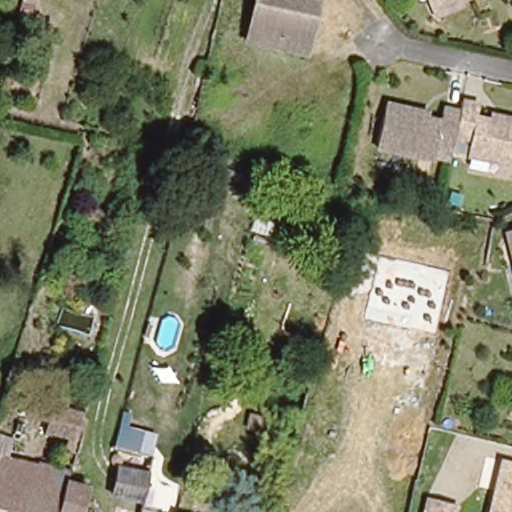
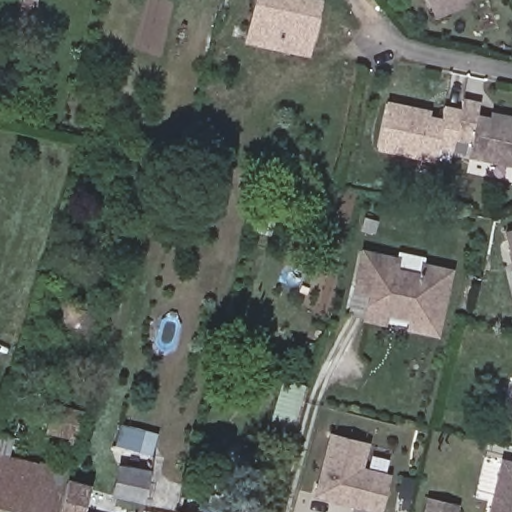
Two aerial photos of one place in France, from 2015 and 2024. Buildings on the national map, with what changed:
unchanged [(246,27),(248,12),(250,0),(310,0),(306,26),(301,51),(266,44),(243,40),(246,27)]
unchanged [(437,16),(428,0),(463,0),(465,5),(437,16)]
unchanged [(473,140),(456,136),(453,149),(435,145),(433,159),(377,148),(385,103),(420,110),(419,115),(442,119),(445,106),(461,110),(463,100),(481,104),(479,115),(499,119),(500,112),(512,115),(512,161),(470,154),(473,140)]
unchanged [(512,246),(508,232),(512,231),(512,248),(512,246)]
new [(361,321),(362,316),(349,314),(355,290),(352,289),(362,249),(455,269),(440,338),(406,330),(361,321)]
new [(308,387),(296,433),(273,426),(284,382),(308,387)]
unchanged [(45,433),(54,405),(81,412),(74,440),(45,433)]
new [(371,442),(364,466),(392,475),(381,512),(370,512),(313,496),(330,432),(371,442)]
unchanged [(161,485),(151,482),(145,506),(114,499),(121,463),(130,466),(134,451),(166,460),(161,485)]
unchanged [(30,493),(26,505),(0,498),(0,455),(71,472),(69,478),(63,501),(30,493)]
unchanged [(512,461),(512,512),(489,512),(500,458),(512,461)]
unchanged [(30,493),(63,501),(69,478),(91,484),(86,503),(114,510),(113,512),(24,512),(26,505),(30,493)]
unchanged [(455,504),(453,512),(423,512),(426,498),(455,504)]
unchanged [(158,511),(158,512),(139,512),(141,507),(158,511)]
unchanged [(175,512),(173,512),(174,511),(175,512)]

